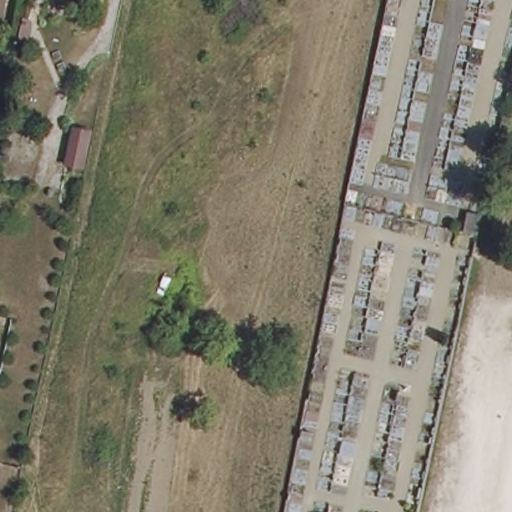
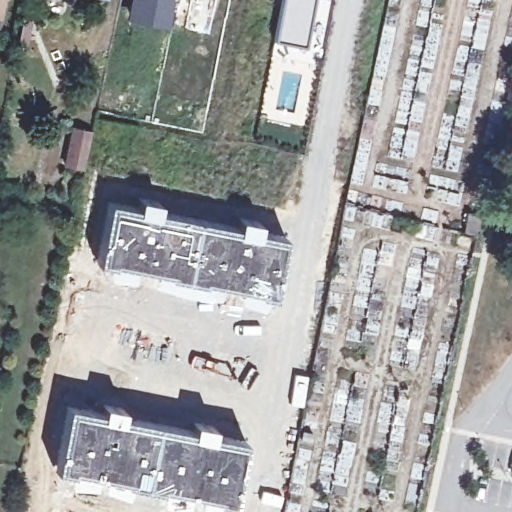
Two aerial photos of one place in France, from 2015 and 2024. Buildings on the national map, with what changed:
unchanged [(0,0),(2,0),(0,10),(0,0)]
new [(177,2),(174,1),(169,23),(126,16),(129,0),(177,0),(177,2)]
new [(283,0),(315,0),(304,47),(276,39),(283,0)]
unchanged [(80,163),(68,160),(74,132),(86,134),(80,163)]
new [(108,202),(137,207),(138,197),(161,202),(160,211),(236,225),(238,217),(261,222),(259,230),(287,236),(274,299),(238,291),(96,263),(108,202)]
unchanged [(475,234),(462,231),(466,212),(479,215),(475,234)]
new [(66,403),(99,410),(101,402),(125,408),(123,414),(191,428),(193,420),(216,425),(213,433),(246,440),(233,508),(196,499),(183,497),(161,493),(103,481),(53,473),(66,403)]

